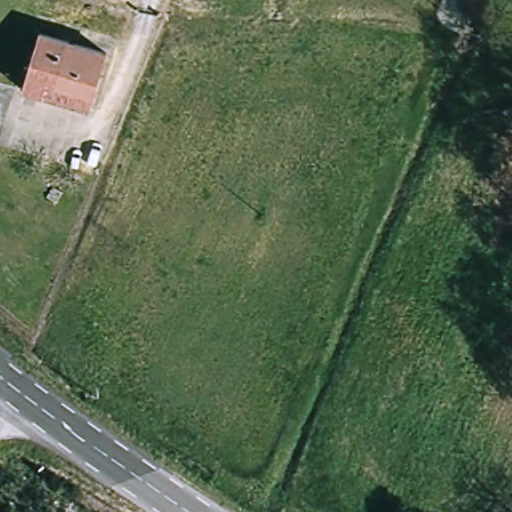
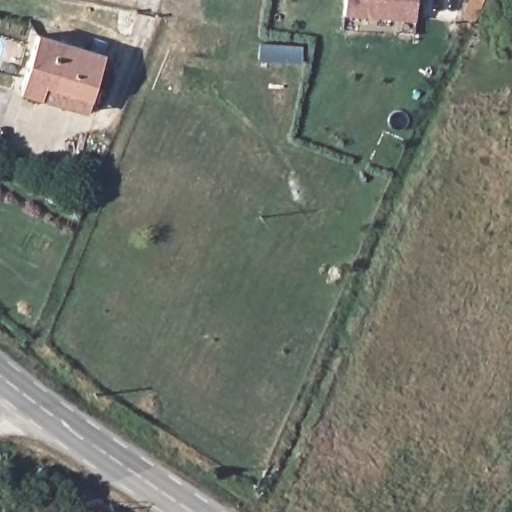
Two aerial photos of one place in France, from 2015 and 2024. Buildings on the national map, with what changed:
new [(347,0),(420,0),(418,22),(346,15),(347,0)]
unchanged [(464,18),(471,0),(499,0),(487,27),(476,23),(464,18)]
unchanged [(39,39),(102,56),(86,117),(22,99),(39,39)]
demolished [(28,464),(15,465),(12,452),(26,449),(28,464)]

